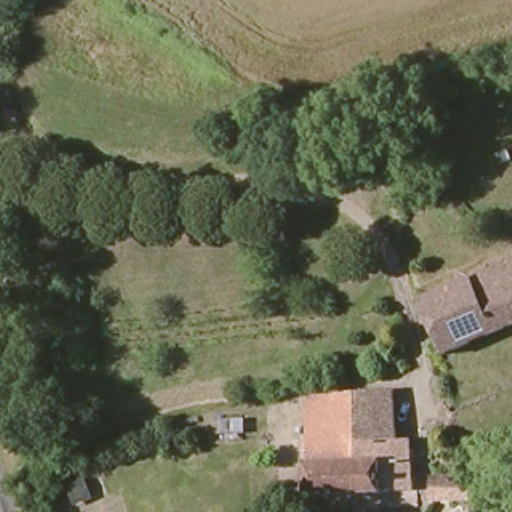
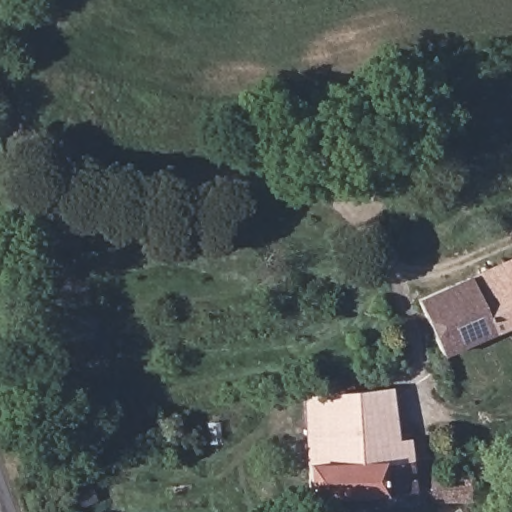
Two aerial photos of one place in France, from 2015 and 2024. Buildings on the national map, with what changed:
unchanged [(418,304),(512,263),(512,330),(443,358),(418,304)]
unchanged [(399,439),(407,440),(416,495),(314,501),(305,397),(395,391),(399,439)]
unchanged [(467,505),(433,507),(432,480),(465,477),(467,505)]

